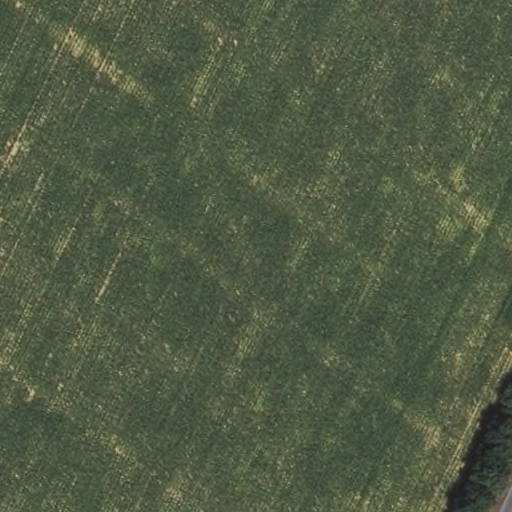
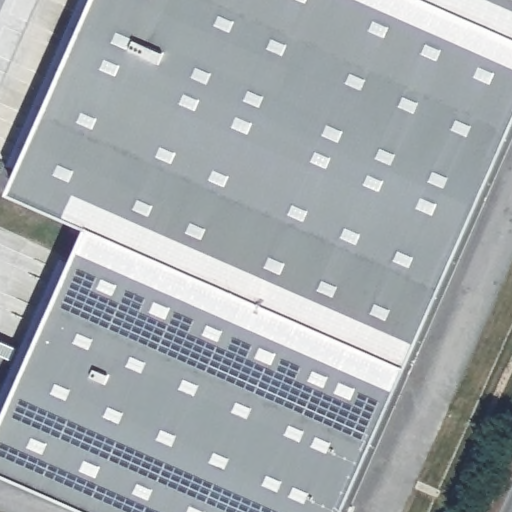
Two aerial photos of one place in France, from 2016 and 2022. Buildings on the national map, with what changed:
new [(16,190),(98,0),(512,0),(512,137),(346,512),(105,512),(0,466),(0,436),(93,224),(16,190)]

